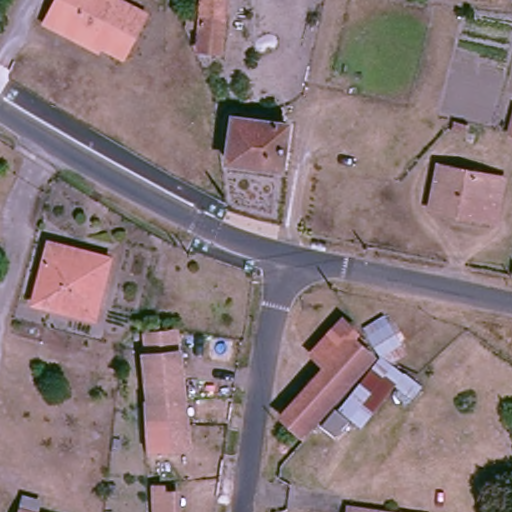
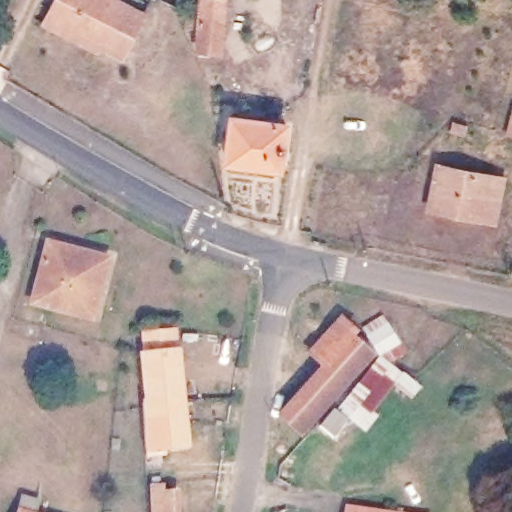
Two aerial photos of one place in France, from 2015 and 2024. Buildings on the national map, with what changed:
unchanged [(149,10),(129,55),(107,45),(105,50),(50,25),(61,0),(126,0),(149,10)]
unchanged [(186,30),(187,15),(200,16),(202,0),(226,0),(221,53),(197,51),(199,31),(186,30)]
unchanged [(512,134),(509,134),(512,122),(512,134)]
unchanged [(282,130),(276,175),(222,167),(228,123),(282,130)]
unchanged [(453,131),(456,124),(466,126),(464,135),(453,131)]
unchanged [(428,215),(437,170),(505,184),(496,229),(428,215)]
unchanged [(93,320),(35,305),(50,248),(71,253),(68,262),(96,269),(89,297),(98,300),(93,320)]
unchanged [(371,356),(361,338),(378,328),(399,363),(387,372),(380,369),(371,356)]
unchanged [(146,451),(143,403),(147,403),(150,403),(143,334),(174,330),(175,330),(182,400),(186,447),(146,451)]
unchanged [(297,445),(277,426),(322,377),(307,365),(337,331),(351,345),(347,350),(367,367),(297,445)]
unchanged [(356,436),(337,421),(376,370),(396,385),(356,436)]
unchanged [(152,498),(152,504),(160,504),(160,512),(144,512),(143,498),(152,498)]

